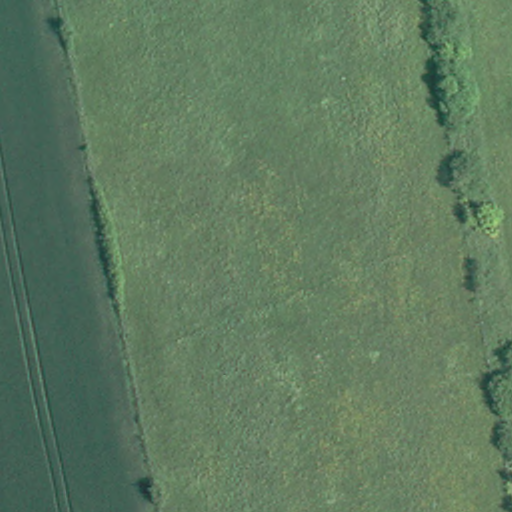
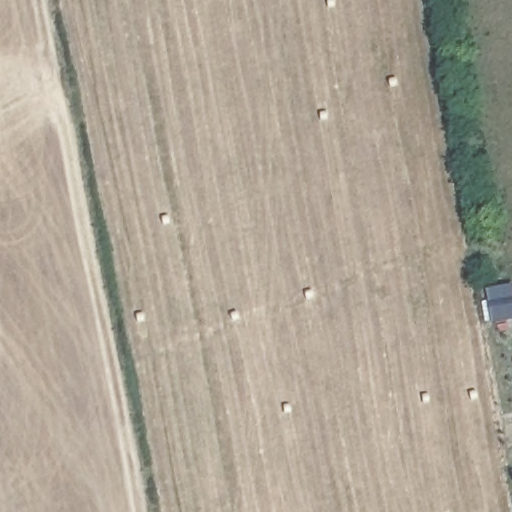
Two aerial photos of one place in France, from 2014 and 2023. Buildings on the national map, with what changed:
new [(512,281),(512,317),(491,320),(486,286),(512,281)]

